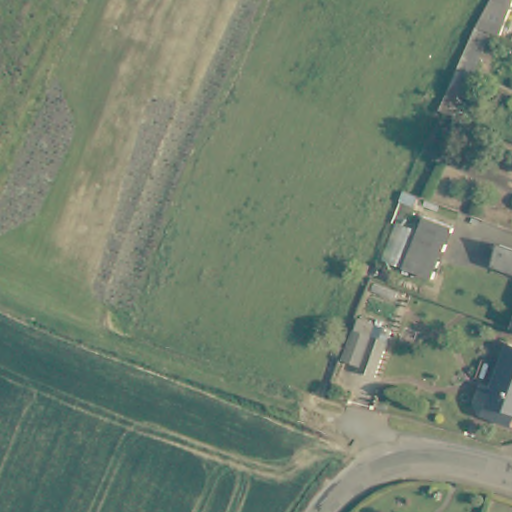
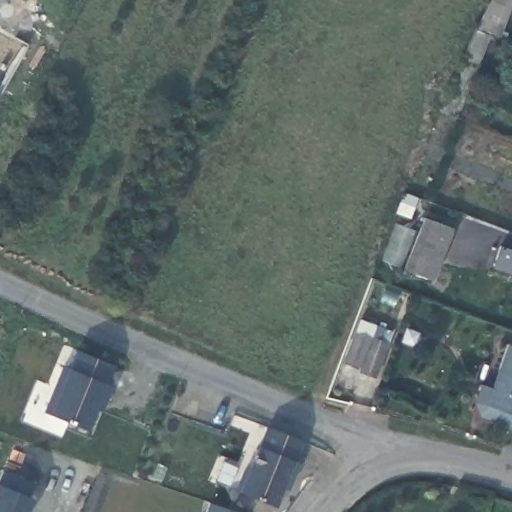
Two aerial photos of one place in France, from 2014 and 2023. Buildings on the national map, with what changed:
unchanged [(489,35),(475,30),(491,0),(512,0),(512,6),(500,39),(489,35)]
unchanged [(449,116),(435,111),(475,30),(489,35),(449,116)]
unchanged [(450,228),(430,279),(400,268),(421,217),(450,228)]
unchanged [(502,241),(512,245),(512,269),(495,262),(502,241)]
unchanged [(381,342),(366,377),(350,371),(353,365),(339,358),(351,330),(381,342)]
new [(107,383),(114,386),(103,413),(97,409),(88,430),(50,413),(77,350),(115,366),(107,383)]
unchanged [(482,400),(488,382),(500,386),(512,356),(512,422),(491,414),(482,400)]
new [(297,460),(301,462),(289,491),(285,488),(277,507),(239,491),(266,426),(304,442),(297,460)]
new [(5,468),(35,480),(29,495),(35,497),(29,512),(0,512),(0,479),(5,468)]

